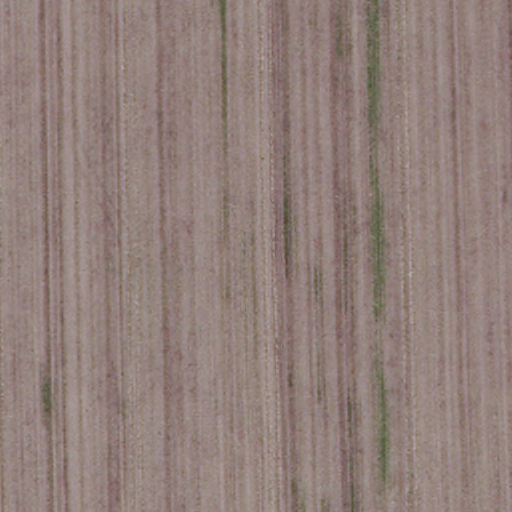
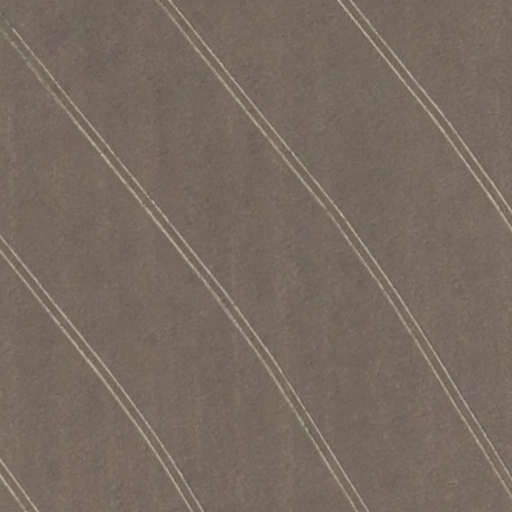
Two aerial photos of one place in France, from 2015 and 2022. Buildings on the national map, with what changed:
[]

